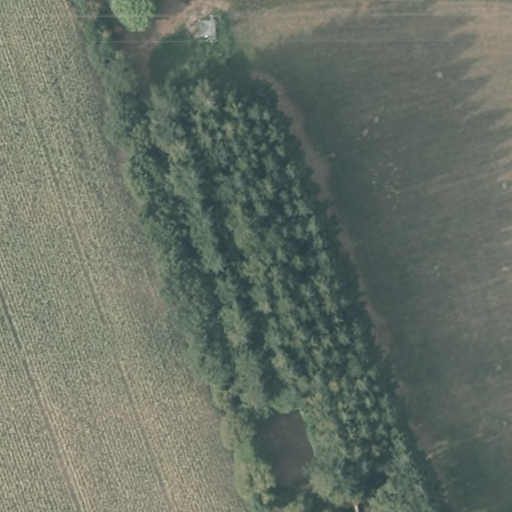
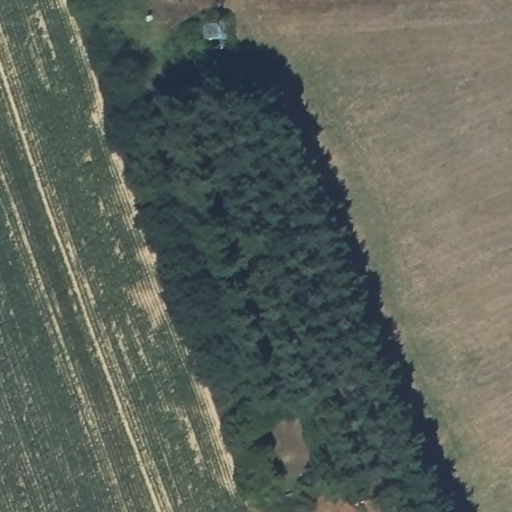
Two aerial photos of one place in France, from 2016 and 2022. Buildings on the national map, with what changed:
[]

